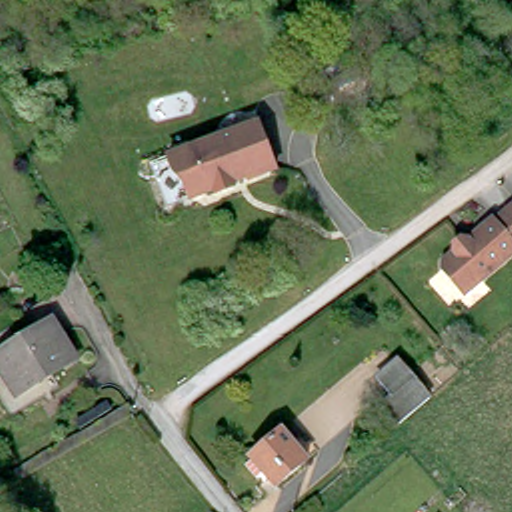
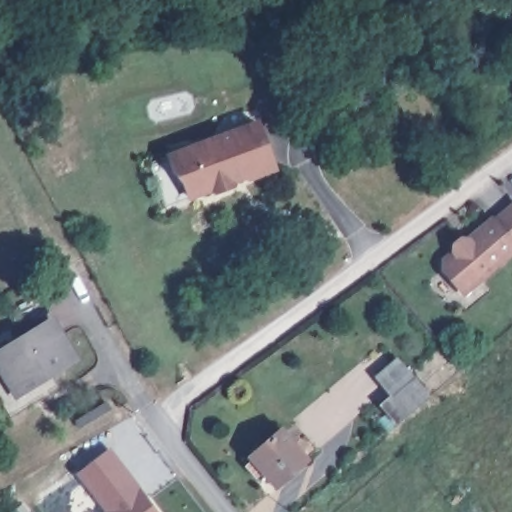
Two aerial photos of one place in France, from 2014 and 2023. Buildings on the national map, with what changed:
unchanged [(258,125),(262,124),(279,170),(252,179),(250,178),(238,182),(237,187),(222,193),(217,191),(195,199),(189,184),(178,173),(178,172),(172,158),(258,125)]
unchanged [(471,294),(450,269),(450,262),(461,253),(460,252),(461,245),(470,238),(475,238),(478,241),(487,234),(485,232),(500,219),(502,221),(512,212),(512,259),(471,294)]
unchanged [(72,354),(15,390),(0,367),(0,345),(48,315),(72,354)]
unchanged [(398,357),(430,392),(415,405),(400,418),(385,399),(395,390),(380,372),(398,357)]
unchanged [(279,425),(303,455),(273,481),(248,451),(279,425)]
new [(157,512),(111,512),(82,473),(112,451),(157,512)]

